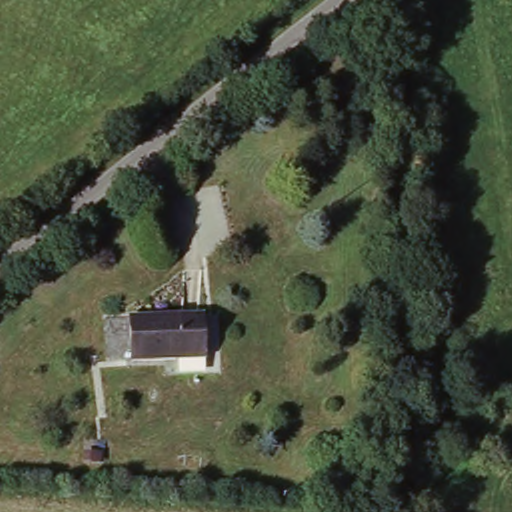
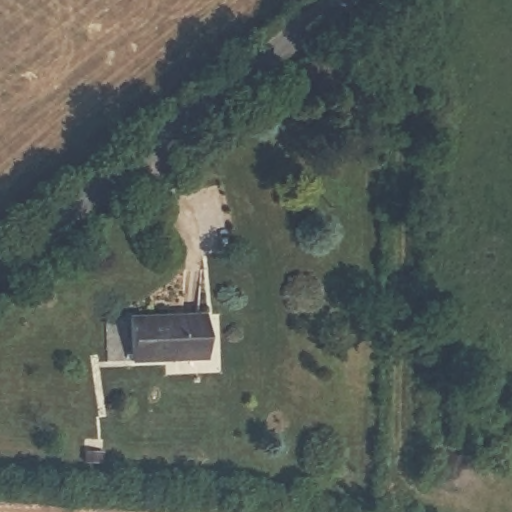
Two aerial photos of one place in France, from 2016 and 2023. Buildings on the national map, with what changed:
unchanged [(201,318),(199,360),(133,357),(134,316),(201,318)]

